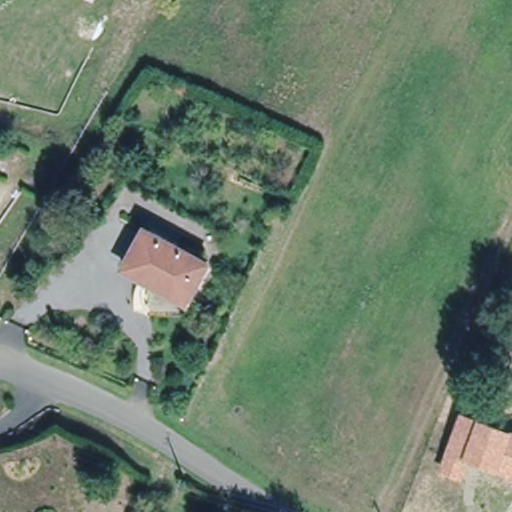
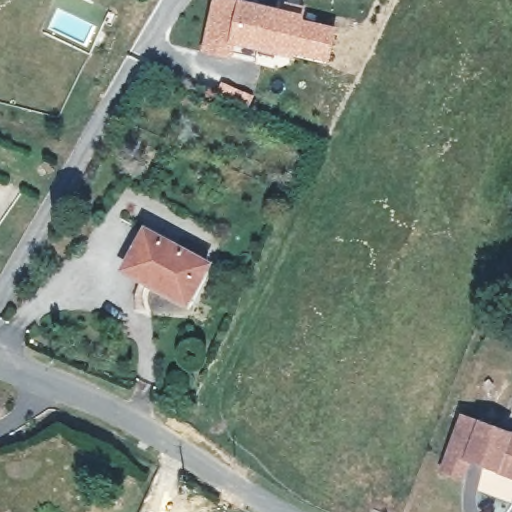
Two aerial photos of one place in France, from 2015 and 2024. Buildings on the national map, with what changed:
new [(286,1),(306,8),(303,19),(338,27),(330,61),(295,53),(293,57),(237,45),(232,58),(204,51),(214,0),(248,0),(283,7),(286,1)]
unchanged [(191,301),(130,268),(150,232),(211,264),(191,301)]
unchanged [(466,476),(447,468),(467,415),(512,431),(512,472),(473,458),(466,476)]

